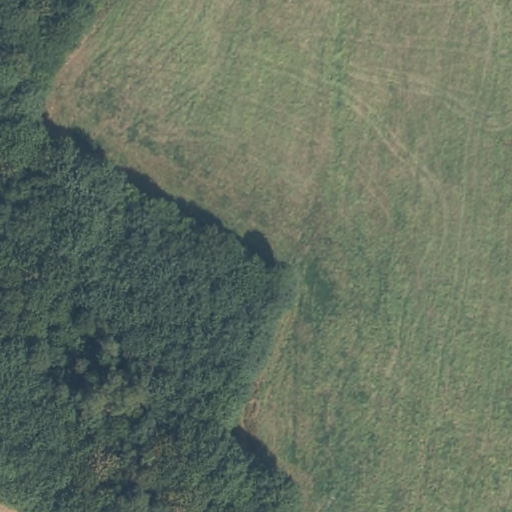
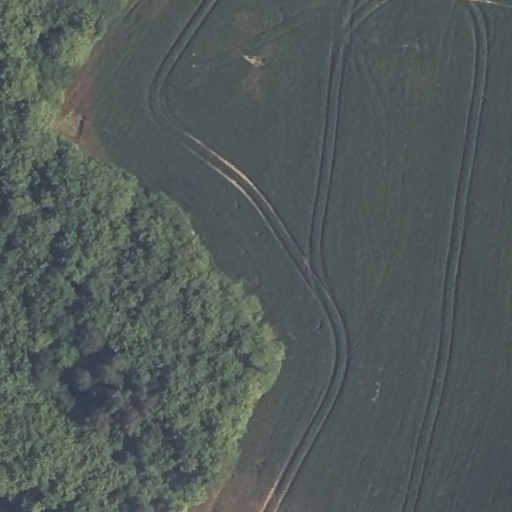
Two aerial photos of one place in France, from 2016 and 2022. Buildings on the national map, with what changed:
[]

